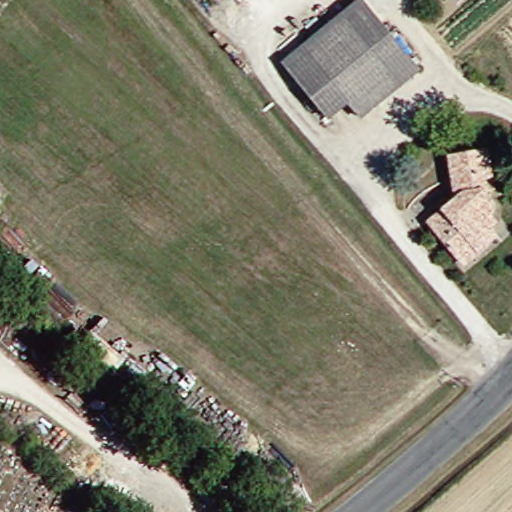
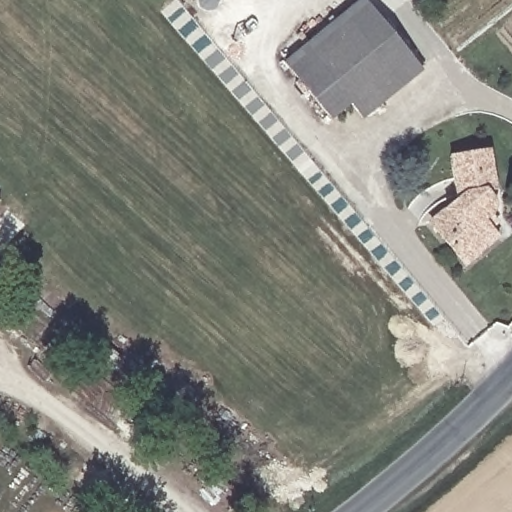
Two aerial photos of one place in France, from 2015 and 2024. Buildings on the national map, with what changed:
unchanged [(364,1),(413,57),(395,72),(345,18),(364,1)]
unchanged [(395,72),(337,122),(291,65),(345,18),(395,72)]
unchanged [(447,215),(463,199),(457,195),(453,152),(491,146),(499,189),(493,193),(498,201),(491,214),(503,226),(494,232),(500,240),(473,265),(450,243),(435,226),(447,215)]

